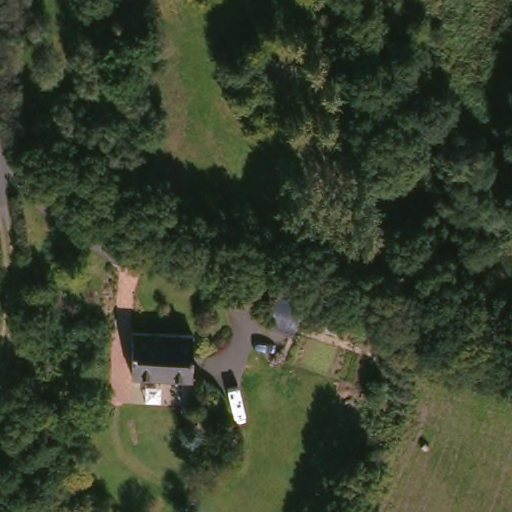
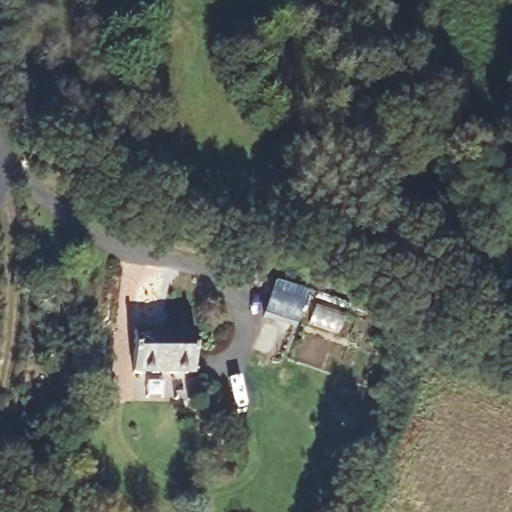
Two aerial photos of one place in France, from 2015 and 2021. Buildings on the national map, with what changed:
unchanged [(294,329),(263,318),(274,285),(304,295),(294,329)]
unchanged [(199,324),(198,367),(138,365),(139,322),(199,324)]

